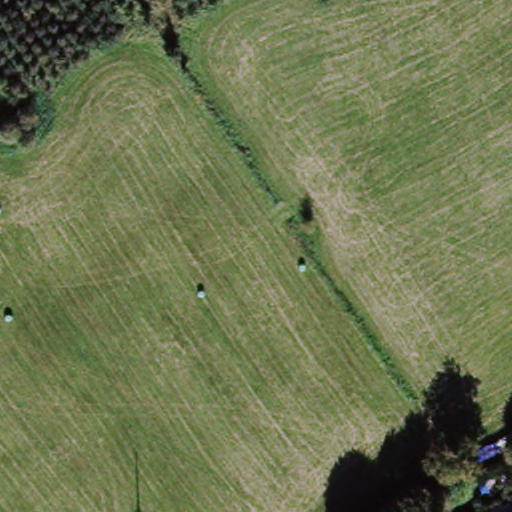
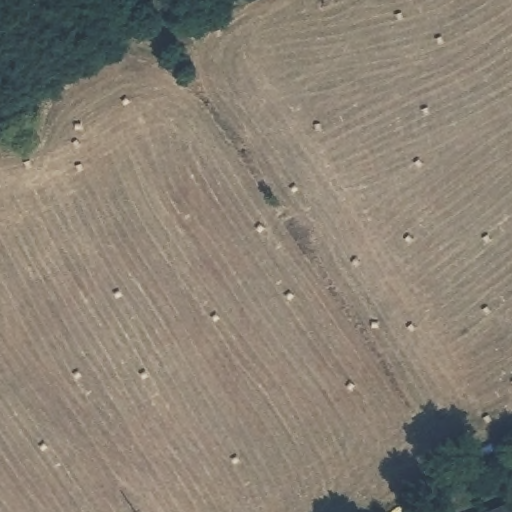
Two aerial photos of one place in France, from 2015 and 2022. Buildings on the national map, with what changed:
unchanged [(492,512),(512,502),(512,512),(492,512)]

